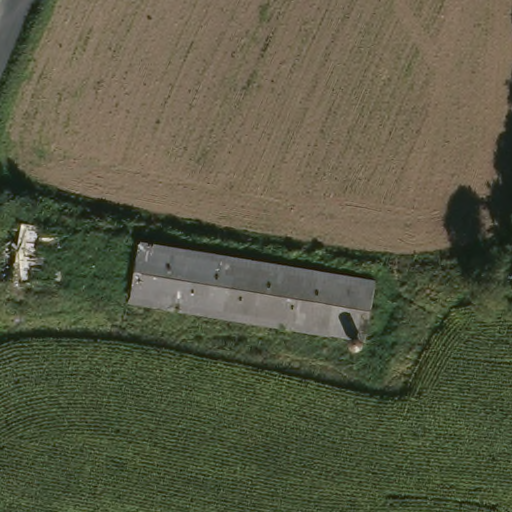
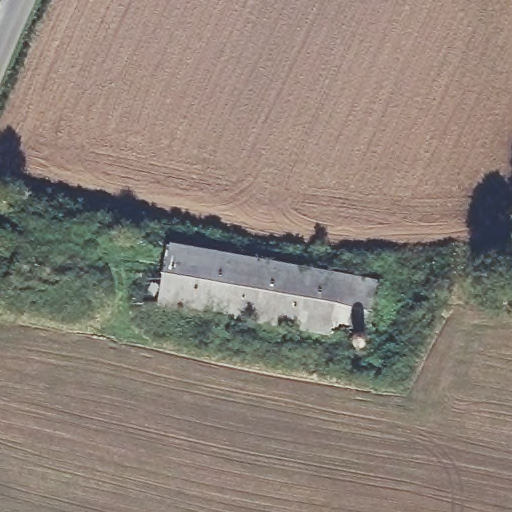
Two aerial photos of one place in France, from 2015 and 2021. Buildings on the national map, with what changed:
unchanged [(26,220),(374,279),(362,339),(11,278),(26,220)]

